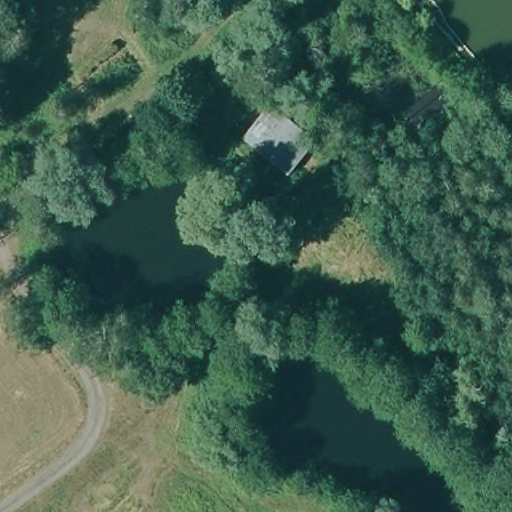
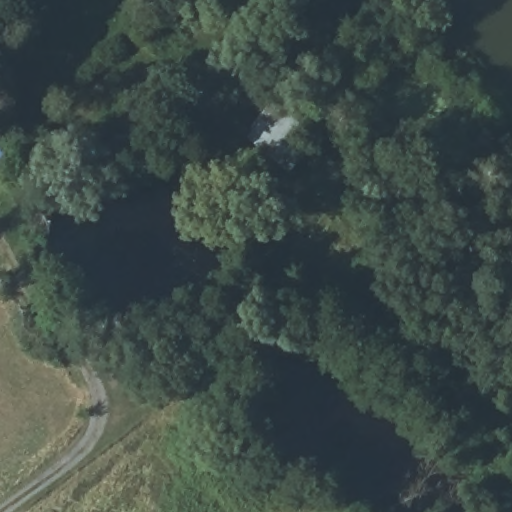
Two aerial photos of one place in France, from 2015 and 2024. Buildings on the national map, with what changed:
unchanged [(242,138),(270,103),(316,142),(290,176),(242,138)]

